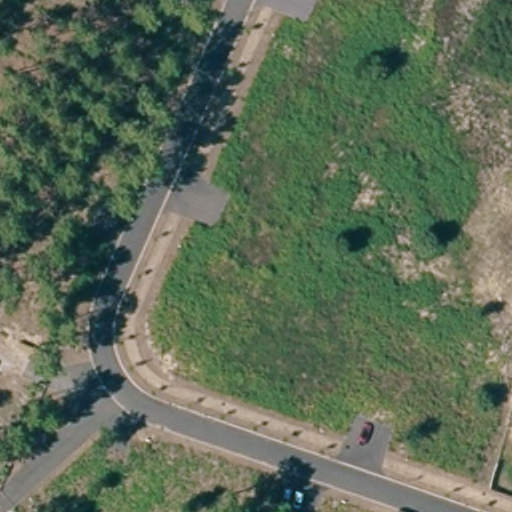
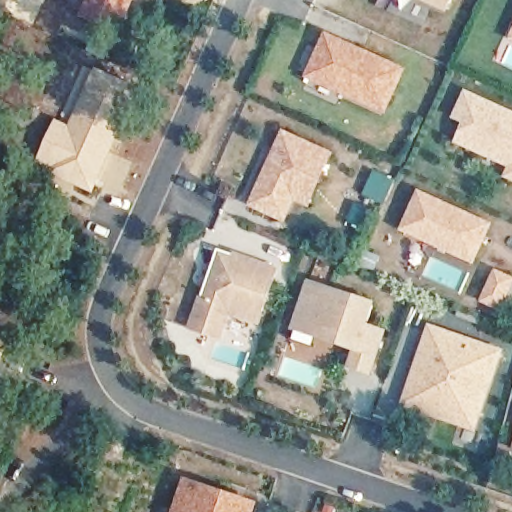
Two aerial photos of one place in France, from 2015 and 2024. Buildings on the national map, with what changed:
new [(119,39),(77,17),(85,0),(136,0),(119,39)]
new [(445,12),(419,0),(450,0),(445,12)]
new [(510,41),(512,36),(512,42),(510,41)]
new [(327,39),(402,73),(385,113),(322,85),(309,78),(312,71),(327,39)]
new [(95,69),(141,89),(94,194),(60,178),(61,173),(39,163),(57,120),(71,126),(95,69)]
new [(506,178),(510,168),(455,143),(465,123),(453,119),(466,90),(512,111),(512,180),(506,178)]
new [(294,200),(284,222),(251,208),(272,161),(276,154),(283,137),(330,159),(318,184),(308,207),(294,200)]
new [(420,196),(491,228),(474,265),(403,233),(420,196)]
new [(218,253),(276,273),(258,325),(229,315),(220,338),(192,328),(202,299),(205,292),(218,253)]
new [(310,287),(373,309),(366,331),(384,337),(370,377),(351,370),(356,354),(294,332),(296,325),(310,287)]
new [(441,417),(409,405),(420,373),(445,381),(450,366),(425,357),(433,336),(480,352),(496,358),(489,377),(476,416),(472,427),(441,417)]
new [(257,512),(173,512),(185,477),(260,504),(257,512)]

